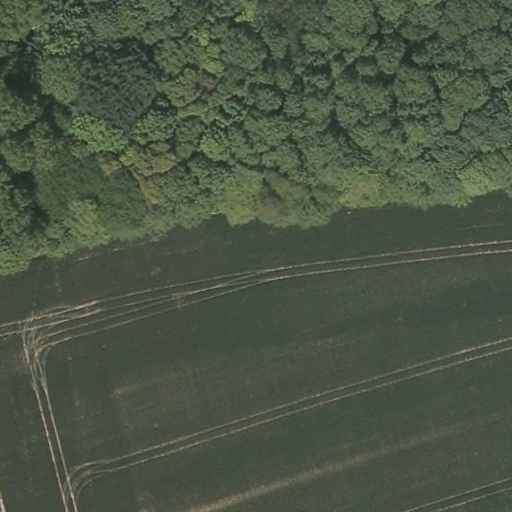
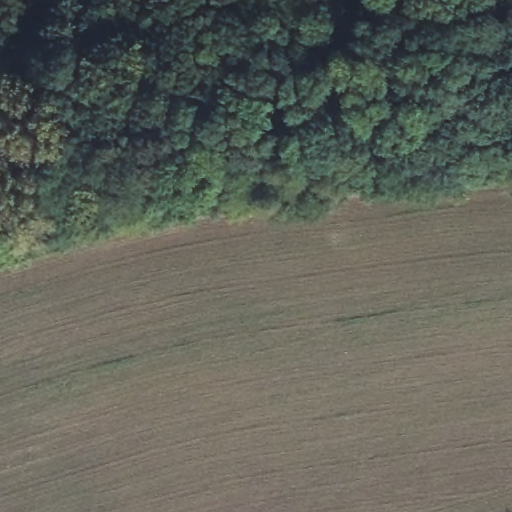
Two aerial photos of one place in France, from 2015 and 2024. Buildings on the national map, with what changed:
[]

